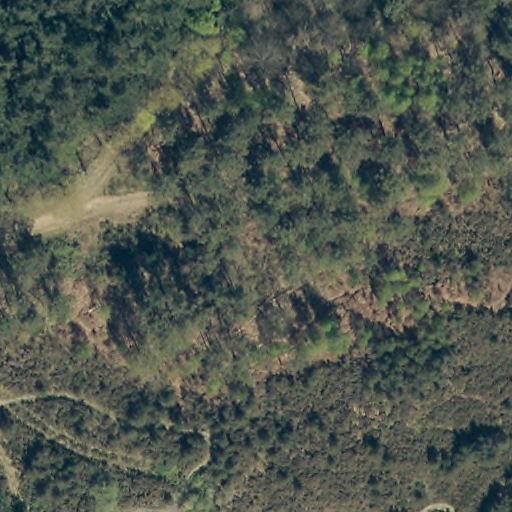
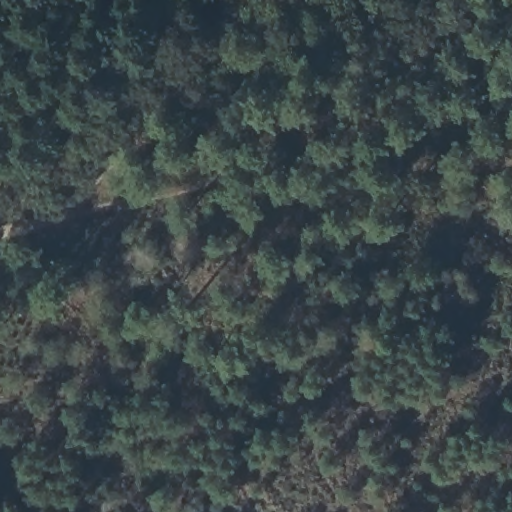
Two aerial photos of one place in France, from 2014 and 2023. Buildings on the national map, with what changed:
[]

